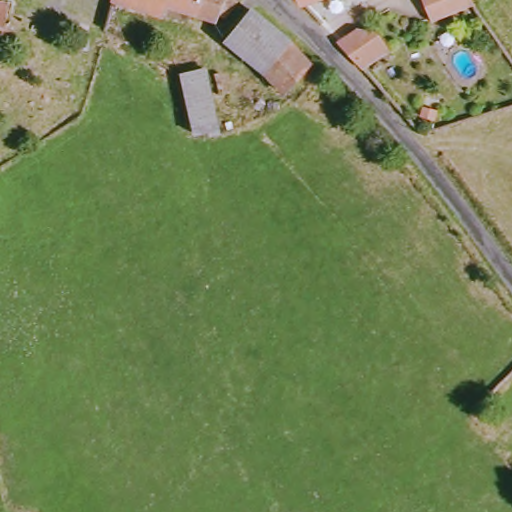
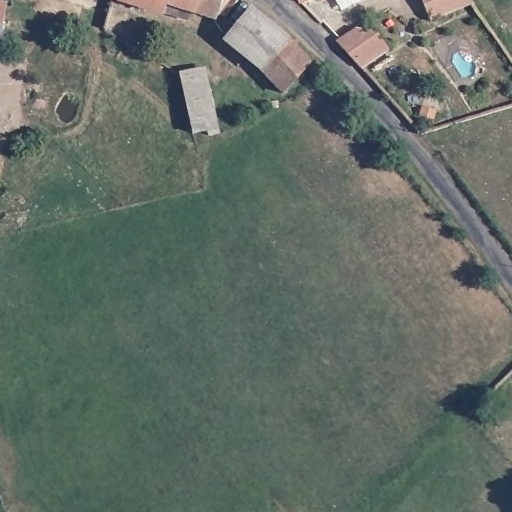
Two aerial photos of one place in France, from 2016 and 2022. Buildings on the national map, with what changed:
unchanged [(12,0),(11,24),(0,23),(0,0),(12,0)]
unchanged [(238,23),(230,19),(228,25),(177,10),(174,19),(125,5),(125,0),(236,0),(248,7),(238,23)]
unchanged [(306,0),(320,0),(308,4),(306,0)]
unchanged [(436,25),(426,0),(473,0),(477,6),(436,25)]
unchanged [(290,94),(274,69),(234,41),(258,9),(296,40),(316,64),(290,94)]
unchanged [(89,24),(86,46),(77,45),(79,30),(75,29),(77,21),(89,24)]
unchanged [(361,29),(381,33),(396,52),(366,72),(340,43),(361,29)]
unchanged [(179,99),(188,96),(183,74),(208,69),(219,128),(196,133),(192,114),(182,115),(179,99)]
unchanged [(285,100),(286,106),(280,109),(277,101),(285,100)]

